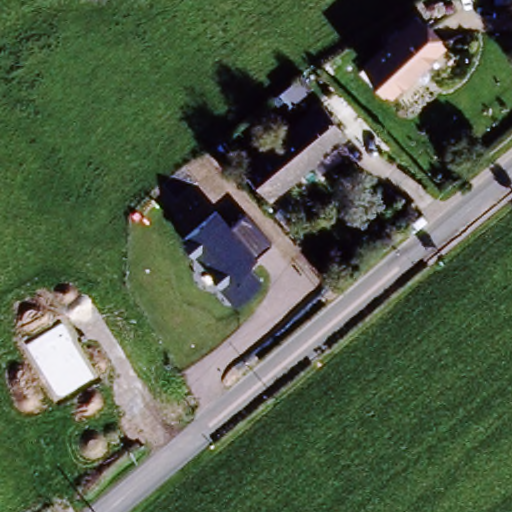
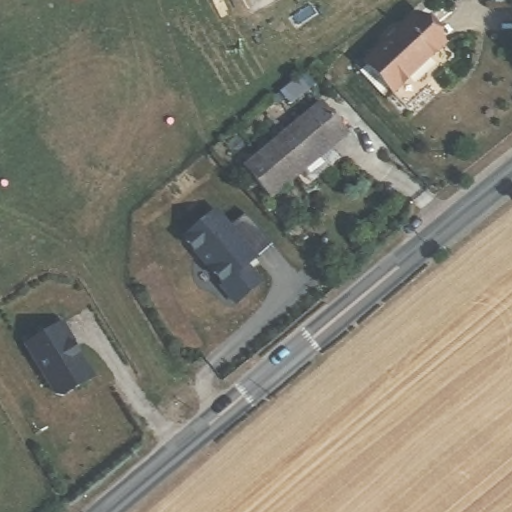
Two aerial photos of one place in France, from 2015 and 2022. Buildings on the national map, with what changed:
unchanged [(362,57),(425,15),(448,50),(385,92),(362,57)]
unchanged [(275,190),(270,195),(242,162),(320,95),(330,107),(348,129),(275,190)]
unchanged [(182,237),(217,207),(230,224),(245,210),(271,241),(255,256),(257,257),(250,263),(263,282),(237,303),(182,237)]
new [(63,322),(97,377),(65,398),(55,396),(23,346),(63,322)]

